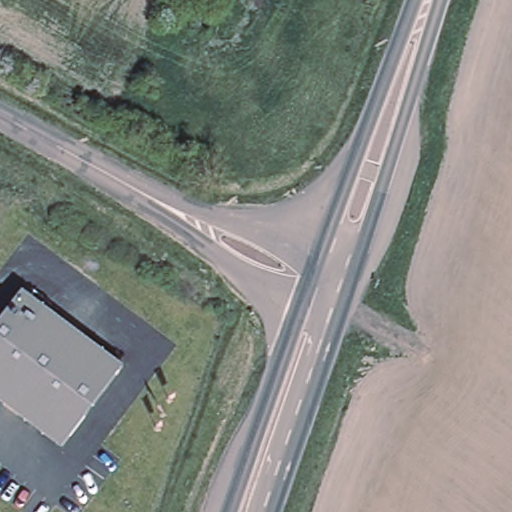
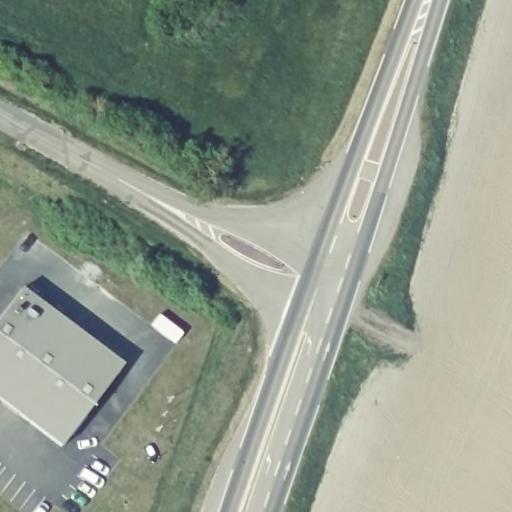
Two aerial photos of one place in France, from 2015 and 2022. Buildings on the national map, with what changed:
unchanged [(121,364),(59,444),(0,399),(0,313),(20,287),(121,364)]

